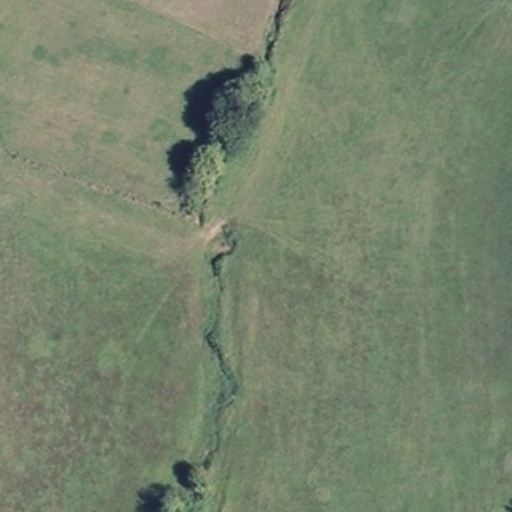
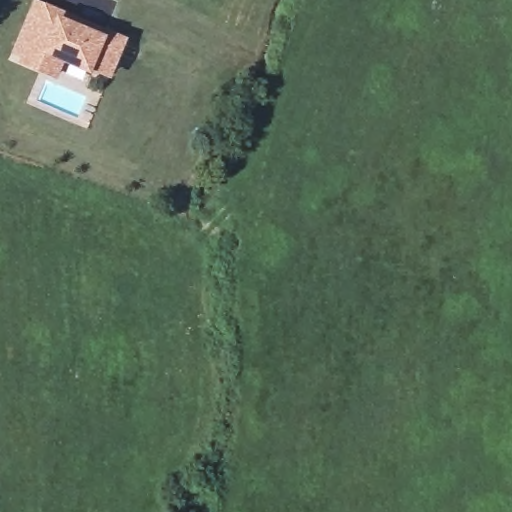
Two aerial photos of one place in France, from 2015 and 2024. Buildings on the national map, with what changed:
new [(129,37),(111,78),(92,69),(68,60),(59,79),(20,63),(22,58),(11,54),(33,0),(42,0),(129,37)]

